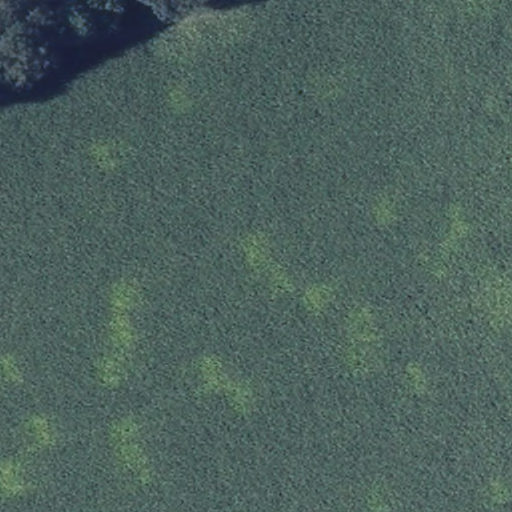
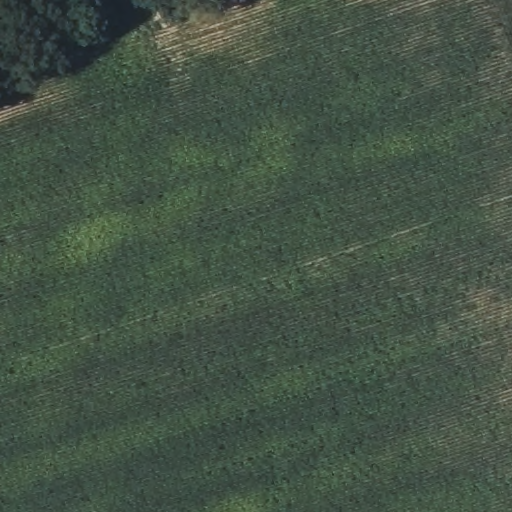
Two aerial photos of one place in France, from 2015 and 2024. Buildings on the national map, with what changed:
[]

